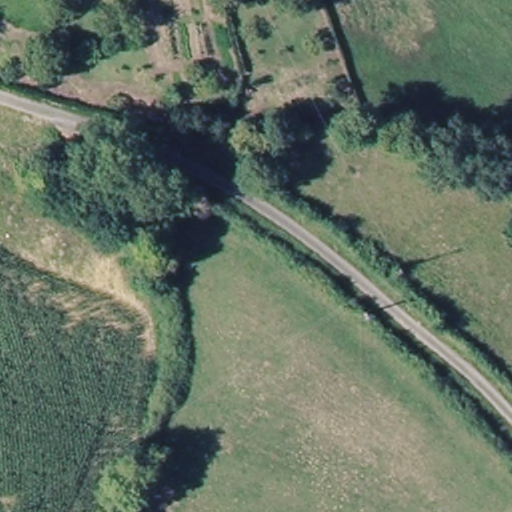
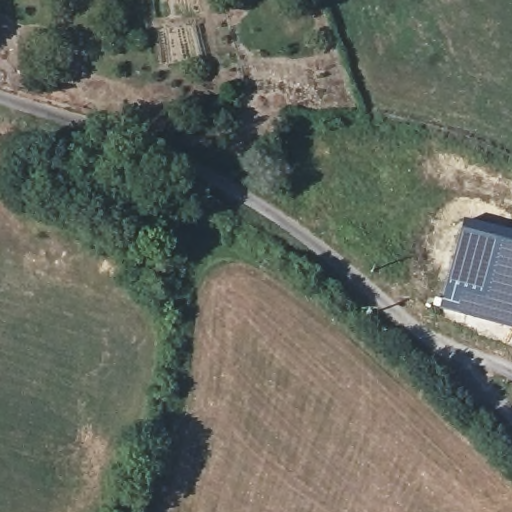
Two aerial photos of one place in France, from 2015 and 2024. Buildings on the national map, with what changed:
new [(512,331),(439,312),(462,220),(512,233),(512,331)]

